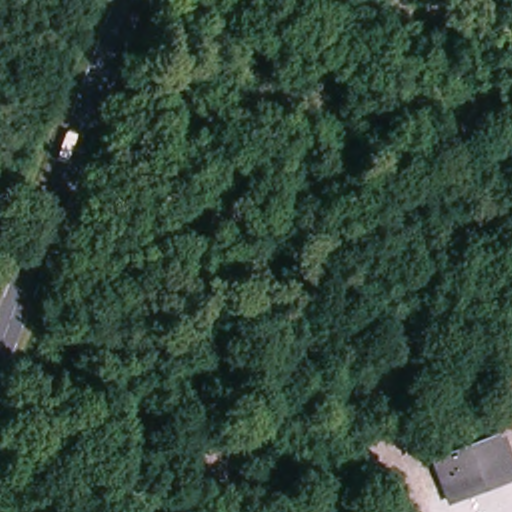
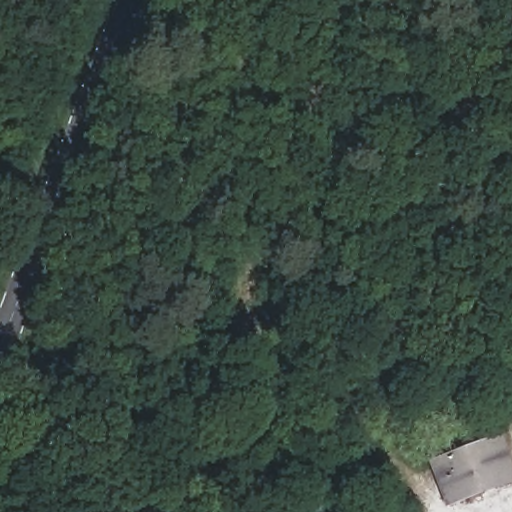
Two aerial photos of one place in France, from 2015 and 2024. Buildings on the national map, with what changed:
unchanged [(448,506),(433,476),(423,457),(447,448),(500,426),(512,453),(512,481),(497,487),(469,498),(448,506)]

